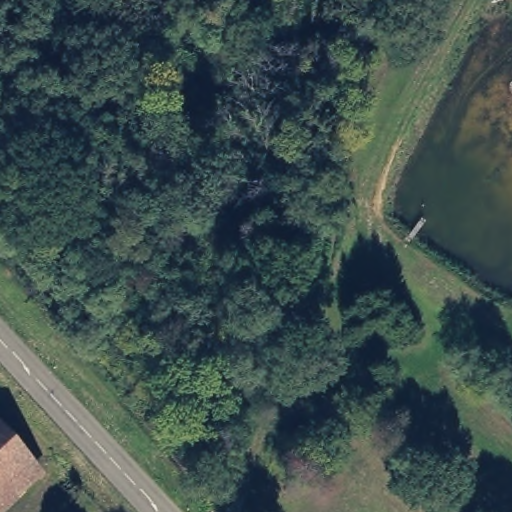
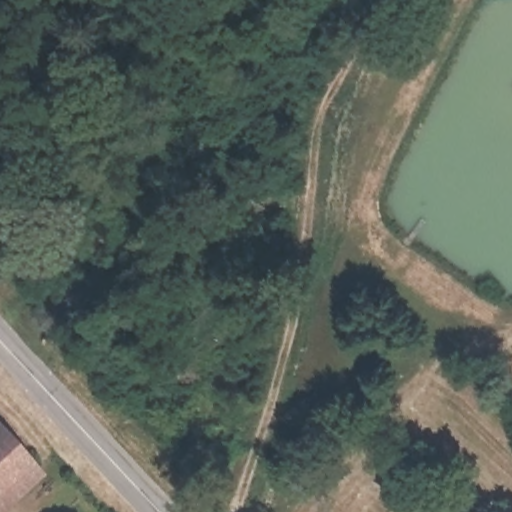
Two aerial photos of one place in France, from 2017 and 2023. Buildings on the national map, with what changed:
unchanged [(32,470),(0,500),(0,436),(32,470)]

